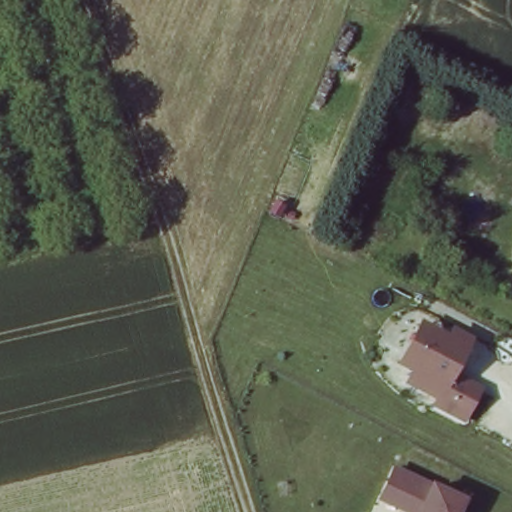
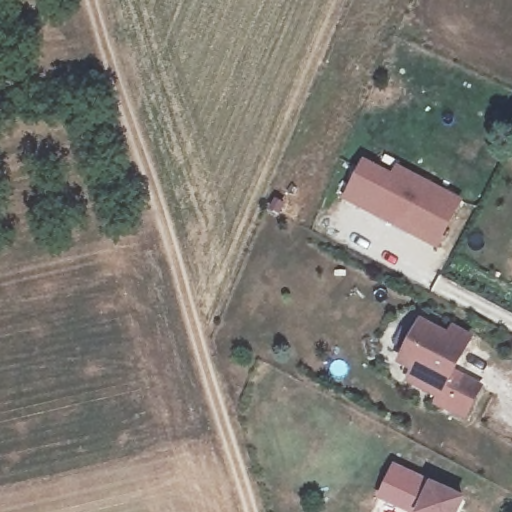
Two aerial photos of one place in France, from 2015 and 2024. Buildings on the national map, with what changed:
new [(437,249),(344,200),(364,159),(392,174),(397,165),(464,199),(437,249)]
unchanged [(443,401),(426,392),(432,382),(418,374),(415,362),(428,338),(440,334),(454,342),(459,334),(476,344),(456,378),(488,396),(472,425),(439,407),(443,401)]
unchanged [(454,512),(396,512),(376,502),(390,473),(457,506),(454,512)]

